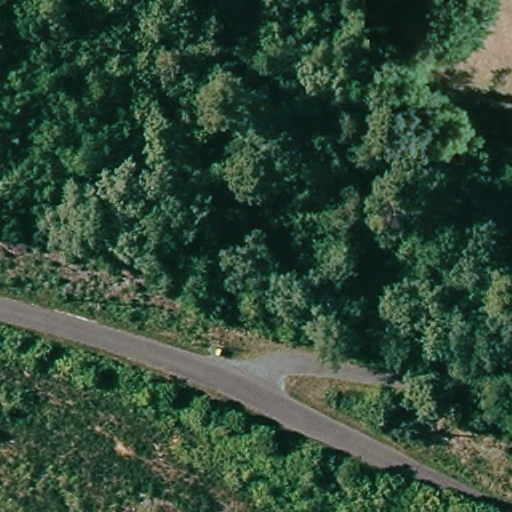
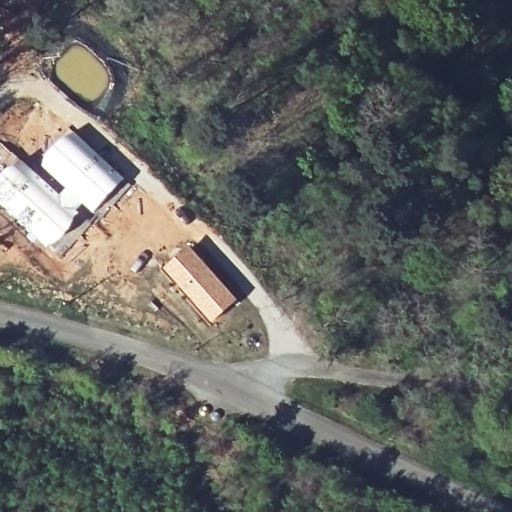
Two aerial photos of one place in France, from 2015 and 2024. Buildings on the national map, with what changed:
new [(72,128),(128,179),(94,215),(85,207),(65,187),(40,162),(72,128)]
new [(60,192),(65,187),(85,207),(79,216),(68,234),(49,250),(0,203),(0,176),(18,157),(60,192)]
new [(176,277),(200,257),(237,300),(212,321),(176,277)]

